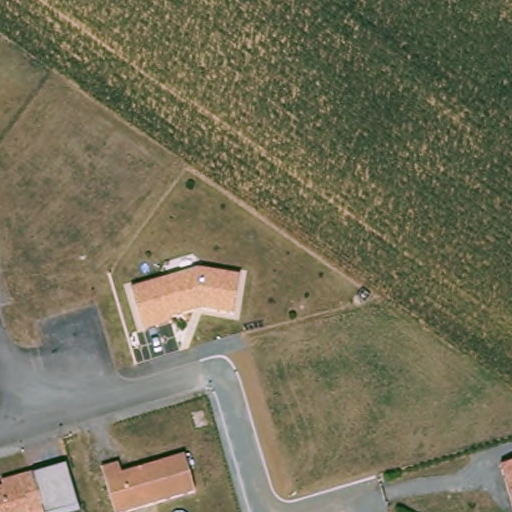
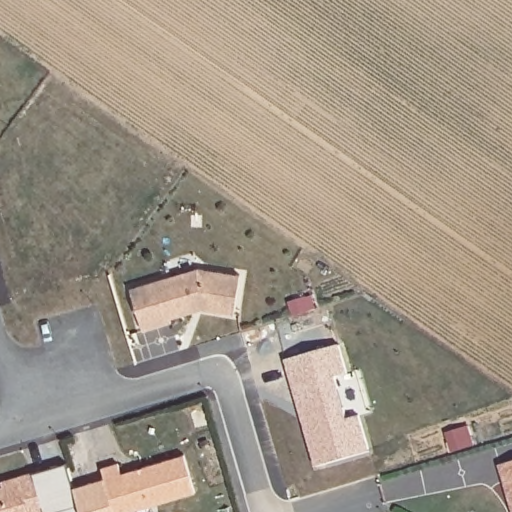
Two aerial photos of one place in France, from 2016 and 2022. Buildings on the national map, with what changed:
unchanged [(194,266),(236,273),(230,312),(197,306),(167,314),(169,318),(141,326),(129,284),(194,266)]
new [(315,467),(286,360),(340,345),(348,374),(336,377),(349,419),(360,417),(370,453),(315,467)]
unchanged [(120,474),(182,454),(194,492),(134,512),(112,512),(102,469),(119,464),(120,474)]
unchanged [(512,510),(500,468),(512,464),(512,510)]
unchanged [(43,512),(0,512),(0,485),(33,473),(43,512)]

